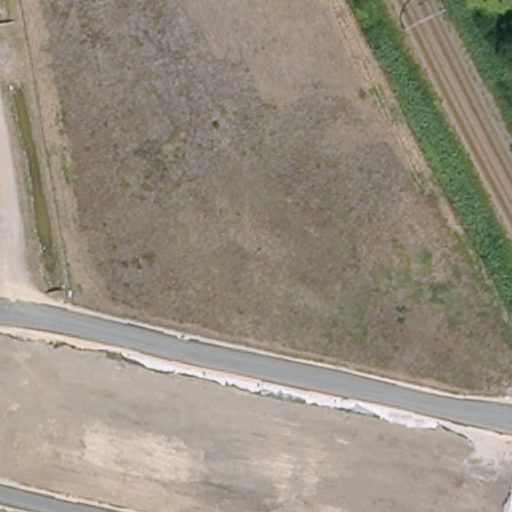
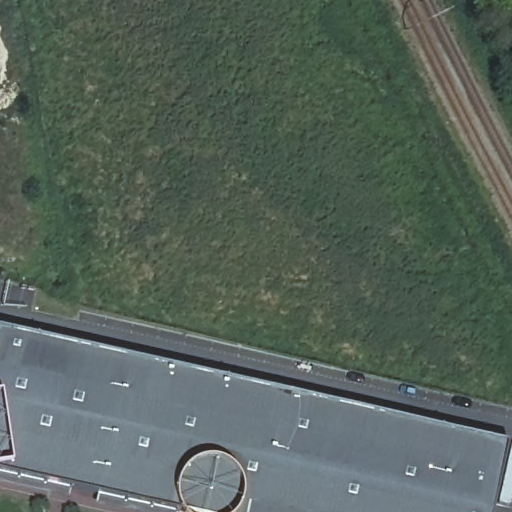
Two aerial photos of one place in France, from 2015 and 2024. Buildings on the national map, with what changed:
demolished [(0,374),(0,308),(16,310),(5,375),(0,374)]
new [(492,512),(178,512),(178,511),(178,512),(137,512),(96,503),(98,493),(71,487),(70,496),(0,481),(0,328),(508,441),(492,512)]

